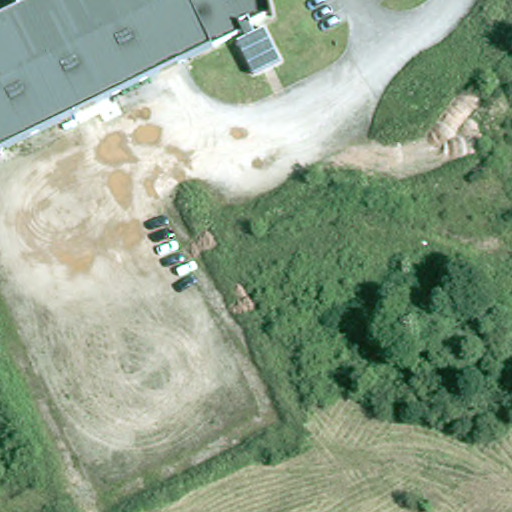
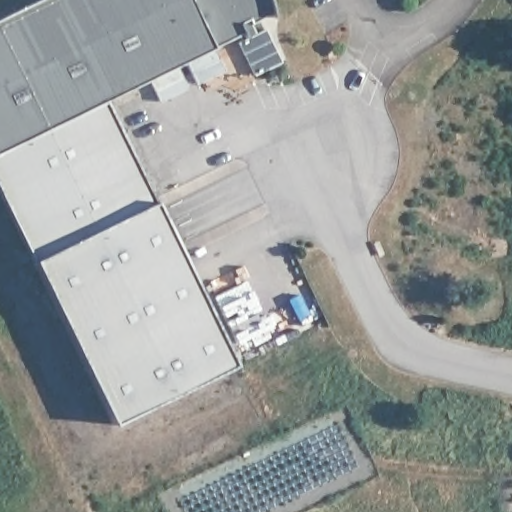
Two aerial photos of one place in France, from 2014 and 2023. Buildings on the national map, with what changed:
unchanged [(276,13),(255,23),(252,19),(244,23),(248,32),(0,154),(0,20),(42,0),(272,0),(276,13)]
new [(0,187),(0,154),(105,102),(155,199),(35,258),(0,187)]
new [(113,422),(35,258),(155,199),(235,363),(113,422)]

